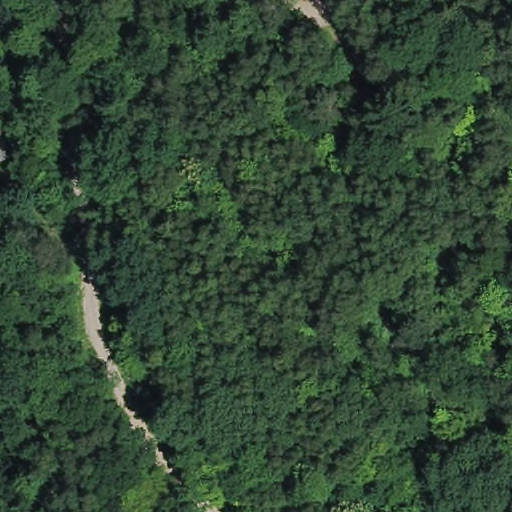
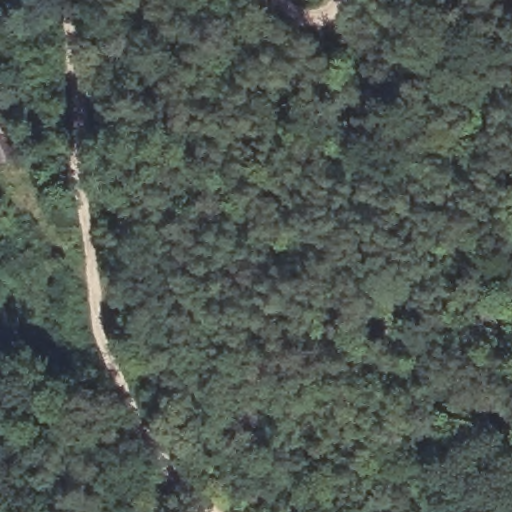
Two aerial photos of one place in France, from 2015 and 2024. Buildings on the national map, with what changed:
unchanged [(0,109),(3,106),(23,133),(0,154),(0,109)]

